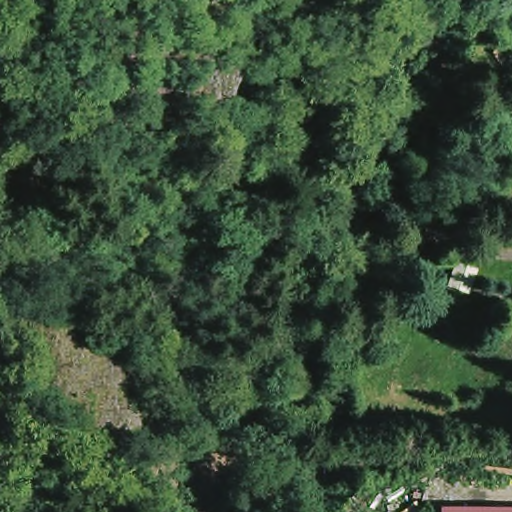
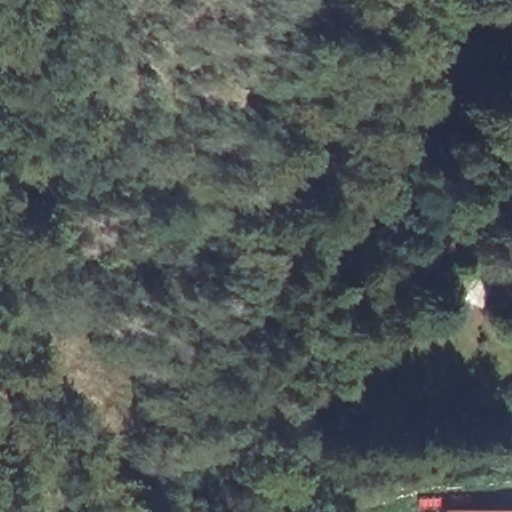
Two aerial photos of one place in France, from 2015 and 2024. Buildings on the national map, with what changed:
unchanged [(423,225),(447,237),(439,252),(416,240),(423,225)]
unchanged [(473,275),(491,281),(484,305),(481,311),(463,305),(465,298),(473,275)]

